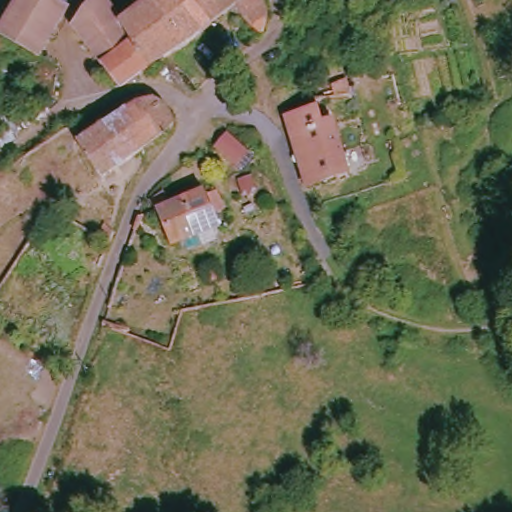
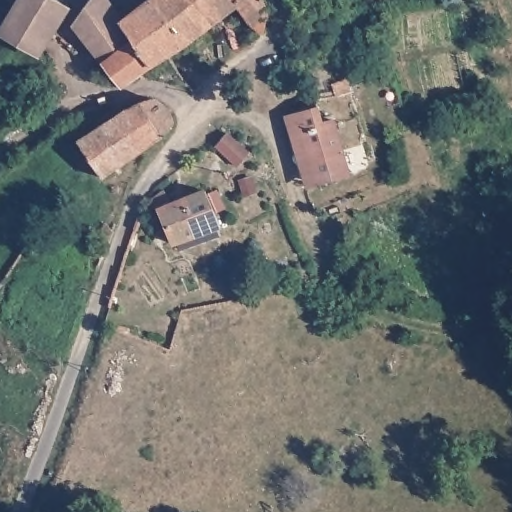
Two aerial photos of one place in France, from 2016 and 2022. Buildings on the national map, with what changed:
unchanged [(23,0),(61,0),(70,5),(38,59),(0,35),(23,0)]
unchanged [(153,62),(119,87),(71,29),(90,0),(107,0),(121,20),(153,62)]
unchanged [(268,0),(272,17),(263,32),(237,5),(200,30),(153,62),(121,20),(146,0),(268,0)]
unchanged [(95,180),(73,146),(84,139),(141,100),(154,102),(162,107),(167,121),(163,136),(102,175),(95,180)]
unchanged [(302,188),(279,115),(318,105),(323,119),(336,116),(351,173),(302,188)]
unchanged [(236,135),(256,155),(243,167),(223,147),(236,135)]
unchanged [(257,180),(260,195),(248,198),(245,182),(257,180)]
unchanged [(151,199),(167,193),(172,205),(187,199),(207,190),(221,226),(200,235),(168,247),(151,199)]
unchanged [(97,236),(103,222),(114,229),(108,243),(97,236)]

